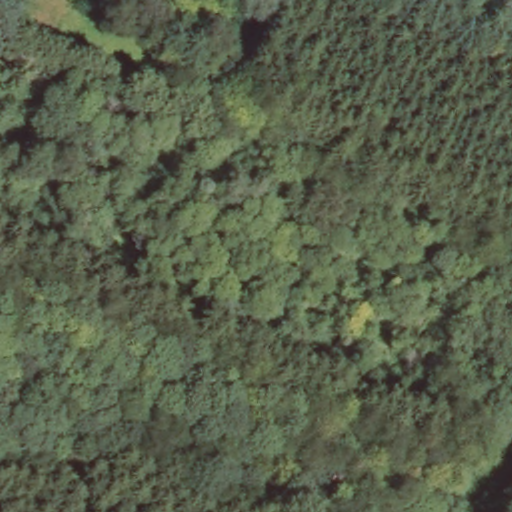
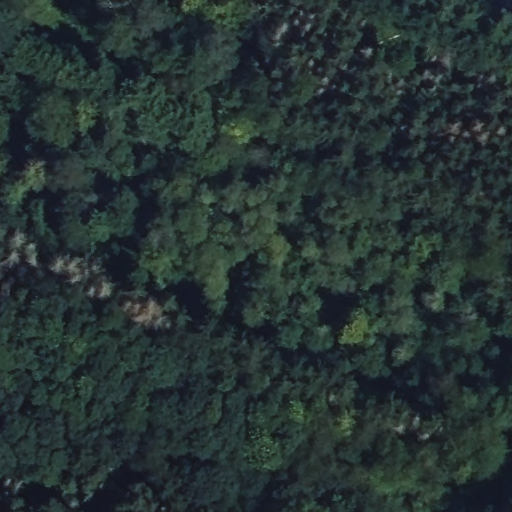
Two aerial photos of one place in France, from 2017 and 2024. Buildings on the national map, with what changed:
unchanged [(126,7),(121,0),(135,0),(126,7)]

